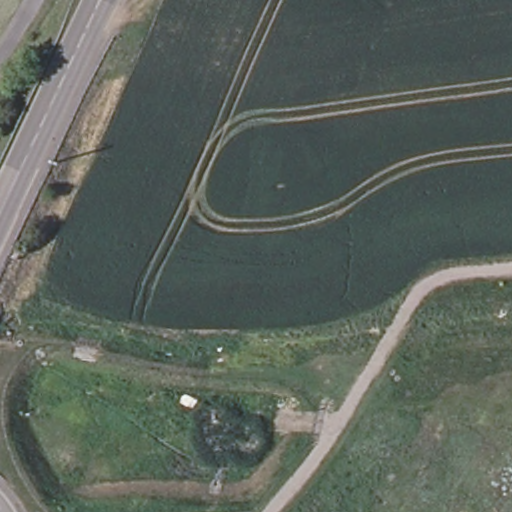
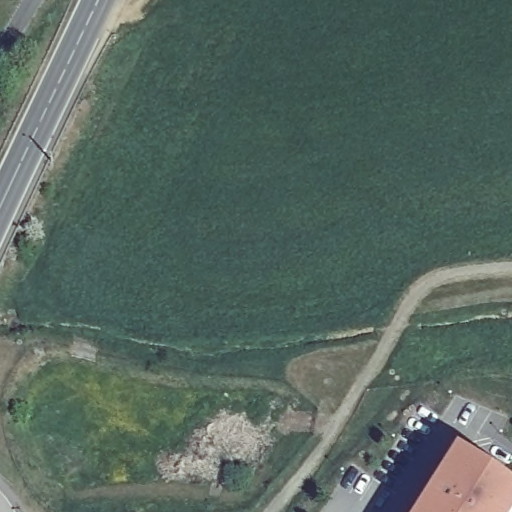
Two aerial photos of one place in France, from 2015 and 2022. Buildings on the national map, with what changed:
new [(512,484),(512,512),(420,512),(460,450),(512,484)]

